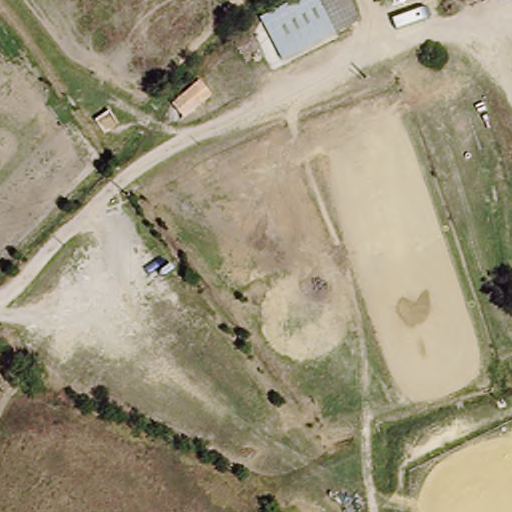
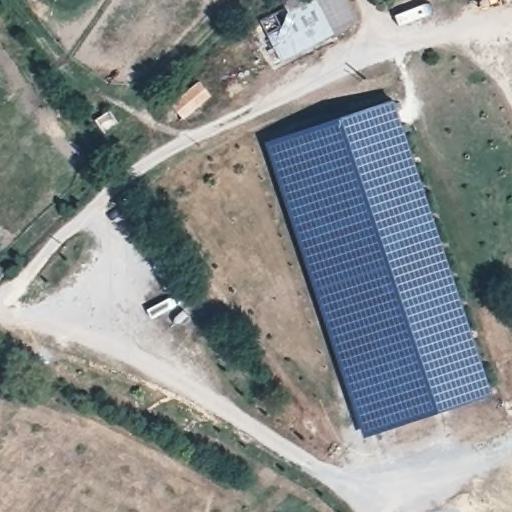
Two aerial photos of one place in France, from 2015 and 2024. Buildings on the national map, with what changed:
unchanged [(336,37),(284,64),(260,17),(294,0),(317,0),(322,10),(335,35),(336,37)]
unchanged [(359,22),(335,35),(322,10),(317,0),(348,0),(359,22)]
unchanged [(194,87),(204,98),(186,114),(176,103),(194,87)]
new [(268,144),(397,101),(492,394),(365,438),(268,144)]

